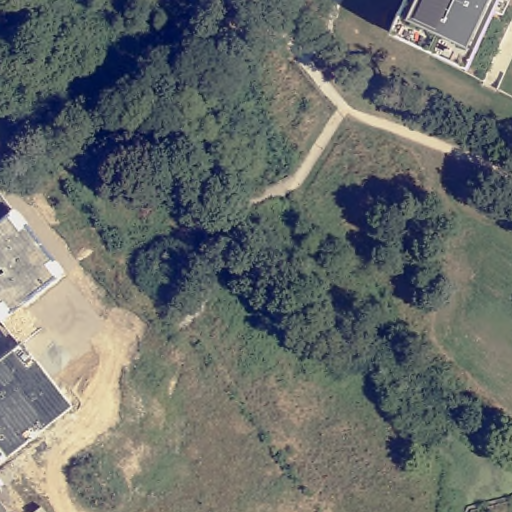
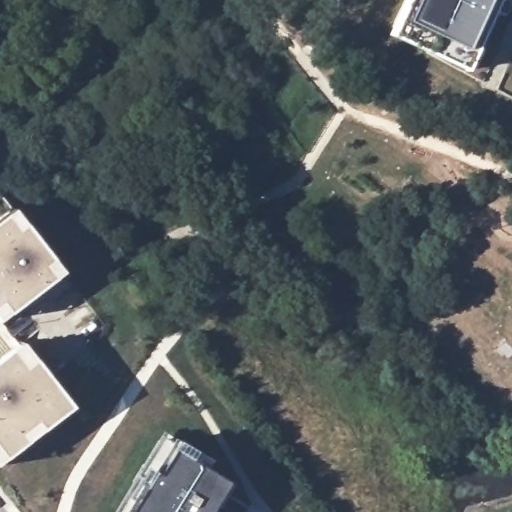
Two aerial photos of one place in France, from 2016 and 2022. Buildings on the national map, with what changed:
unchanged [(388,35),(405,0),(501,0),(467,71),(388,35)]
unchanged [(0,220),(0,190),(15,208),(0,220)]
unchanged [(64,272),(5,318),(0,322),(0,220),(15,208),(64,272)]
unchanged [(22,343),(0,359),(0,322),(5,318),(22,343)]
unchanged [(73,406),(0,465),(0,359),(22,343),(73,406)]
new [(145,489),(137,485),(147,468),(159,474),(173,448),(229,481),(211,512),(131,512),(145,489)]

